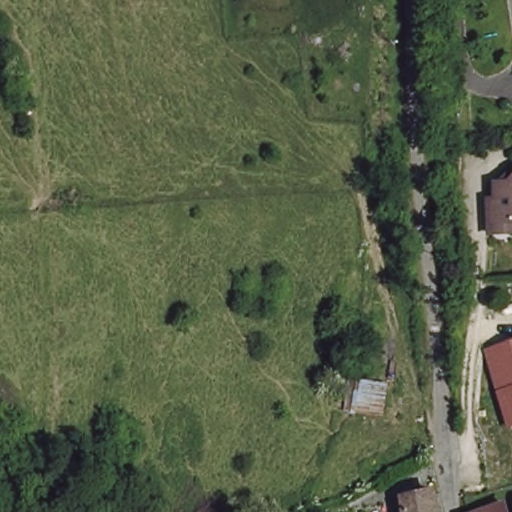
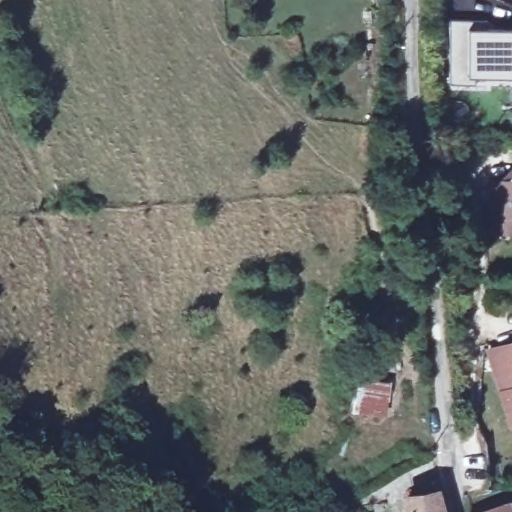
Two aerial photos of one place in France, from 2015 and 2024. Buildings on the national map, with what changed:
new [(475,86),(454,86),(456,20),(485,21),(486,29),(512,30),(512,78),(475,77),(475,86)]
unchanged [(500,194),(506,194),(506,177),(512,177),(512,231),(499,230),(500,194)]
unchanged [(486,349),(512,344),(512,431),(486,349)]
unchanged [(352,419),(351,385),(385,384),(384,419),(352,419)]
unchanged [(434,490),(440,512),(405,512),(402,496),(434,490)]
unchanged [(509,512),(476,512),(508,505),(509,512)]

